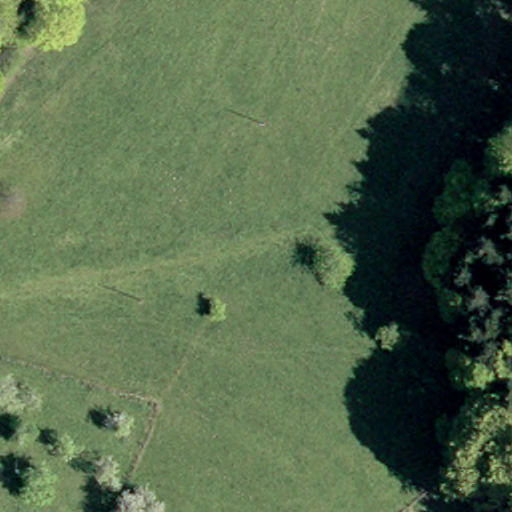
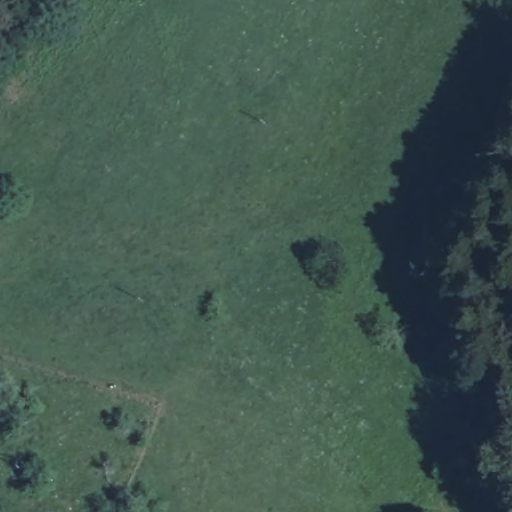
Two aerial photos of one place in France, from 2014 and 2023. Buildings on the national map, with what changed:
[]

